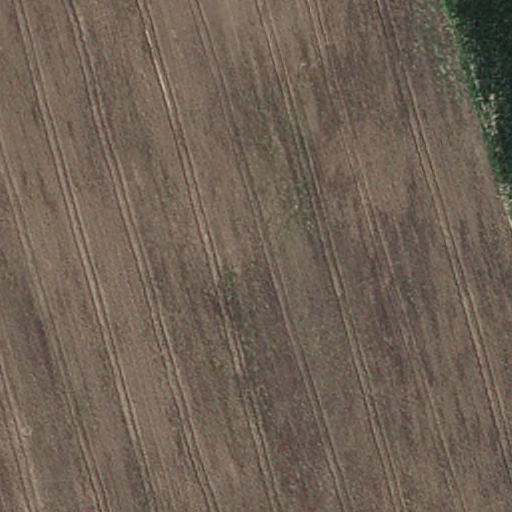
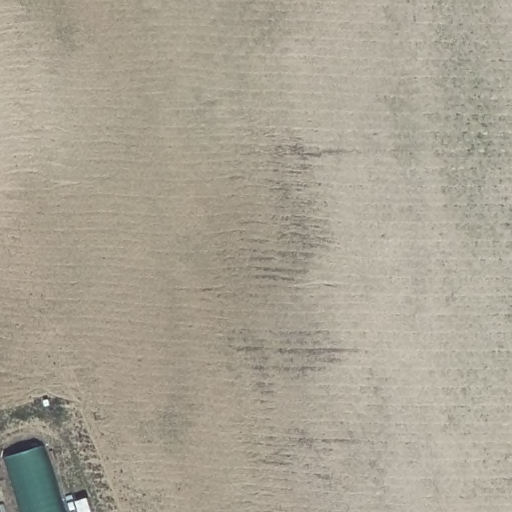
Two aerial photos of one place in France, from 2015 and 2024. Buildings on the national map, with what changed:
new [(6,457),(43,447),(61,512),(22,512),(6,457)]

